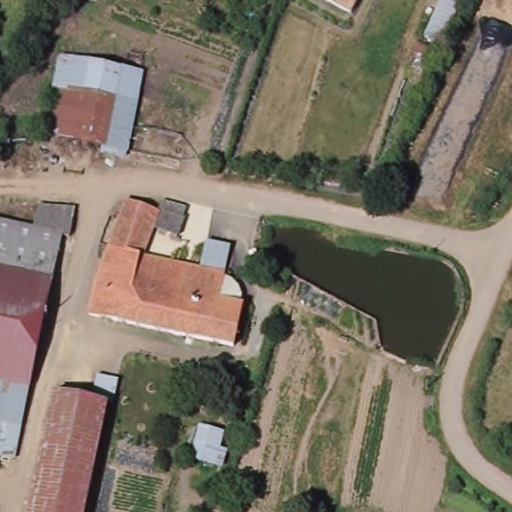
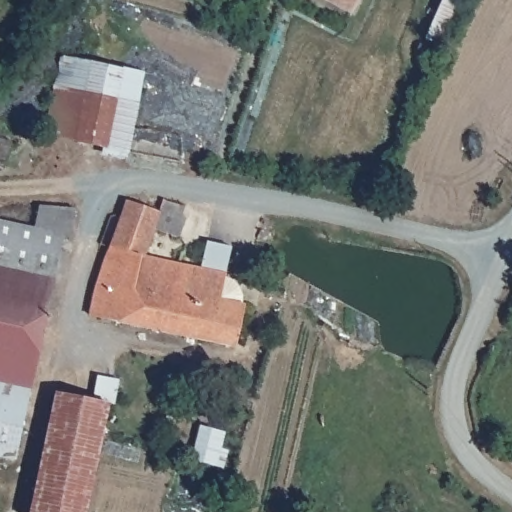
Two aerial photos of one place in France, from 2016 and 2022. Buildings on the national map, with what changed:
unchanged [(351,17),(318,0),(361,0),(351,17)]
unchanged [(454,5),(435,42),(420,33),(439,0),(445,0),(454,5)]
unchanged [(43,136),(59,53),(147,72),(133,160),(43,136)]
unchanged [(38,142),(34,159),(21,156),(25,139),(38,142)]
unchanged [(243,299),(238,310),(239,314),(228,353),(83,310),(84,294),(120,201),(186,213),(176,238),(154,230),(146,256),(200,272),(207,249),(233,258),(225,280),(223,286),(234,288),(243,299)]
unchanged [(49,210),(84,218),(78,245),(70,243),(30,395),(0,388),(0,225),(41,235),(46,219),(49,210)]
unchanged [(11,464),(0,462),(0,388),(30,395),(11,464)]
unchanged [(84,512),(28,512),(61,395),(114,409),(84,512)]
unchanged [(232,443),(224,473),(201,468),(210,436),(232,443)]

